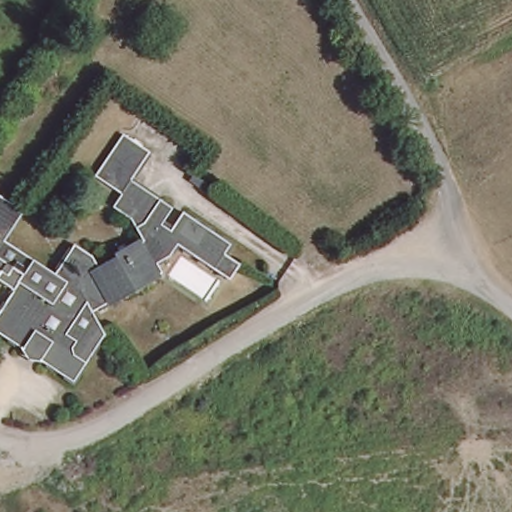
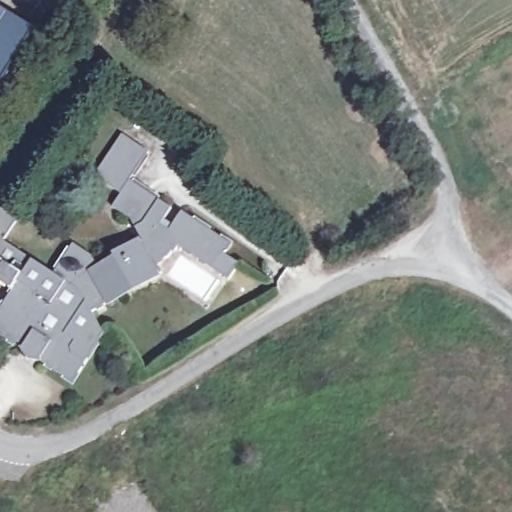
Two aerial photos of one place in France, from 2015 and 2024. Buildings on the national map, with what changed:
new [(0,8),(36,31),(0,88),(0,8)]
unchanged [(0,339),(0,315),(12,296),(0,288),(0,201),(23,216),(3,245),(54,278),(73,249),(92,262),(96,270),(114,261),(112,257),(138,243),(140,247),(143,245),(132,224),(112,211),(120,198),(94,181),(122,137),(149,155),(129,185),(171,212),(160,229),(170,235),(181,217),(229,248),(222,259),(237,269),(228,283),(177,249),(169,261),(156,267),(161,277),(140,288),(124,297),(91,316),(102,339),(71,386),(39,365),(27,365),(21,353),(0,339)]
unchanged [(192,173),(211,186),(206,193),(187,180),(192,173)]

